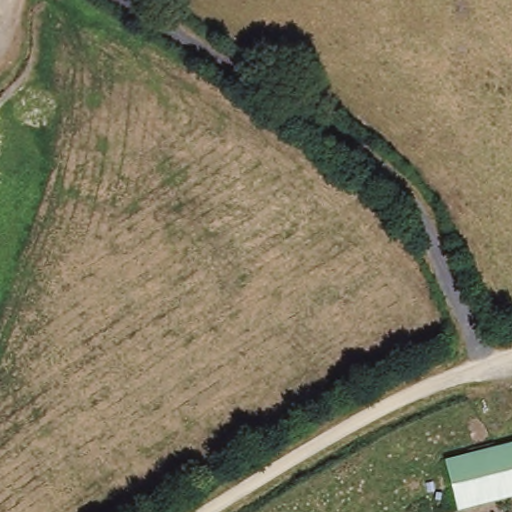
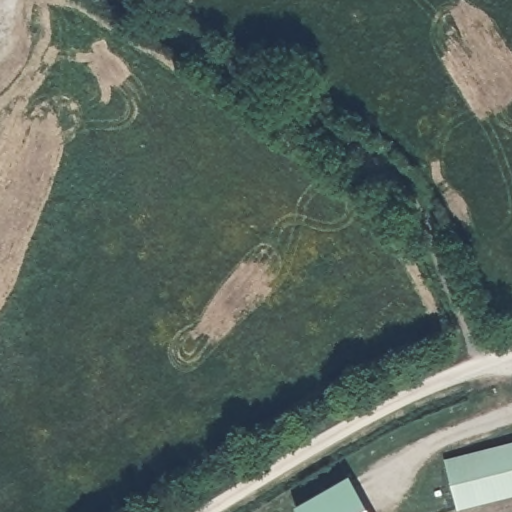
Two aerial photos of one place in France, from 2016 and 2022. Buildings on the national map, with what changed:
unchanged [(456,510),(443,458),(512,441),(512,496),(456,510)]
new [(296,504),(349,472),(373,512),(301,512),(296,504)]

